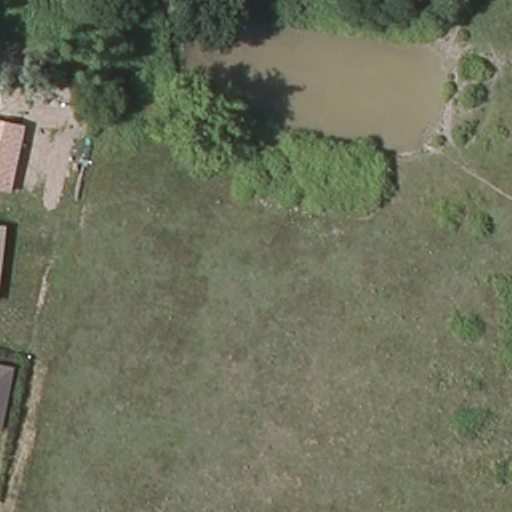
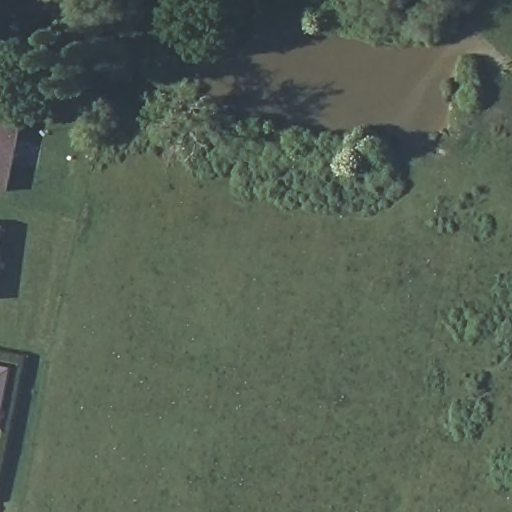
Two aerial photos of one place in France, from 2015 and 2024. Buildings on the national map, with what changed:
unchanged [(0,190),(0,122),(21,126),(8,191),(0,190)]
unchanged [(3,227),(0,253),(0,227),(3,227)]
unchanged [(10,367),(0,415),(0,366),(10,367)]

